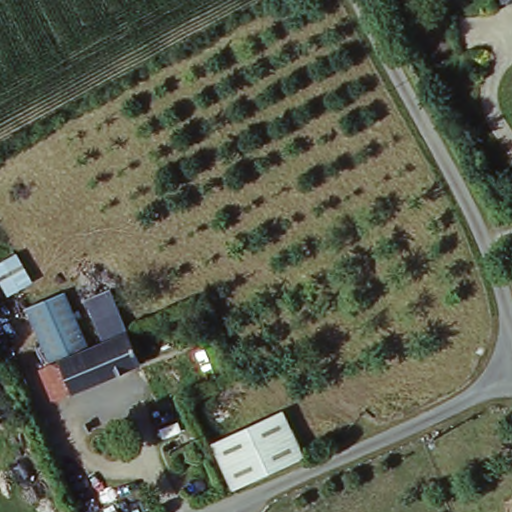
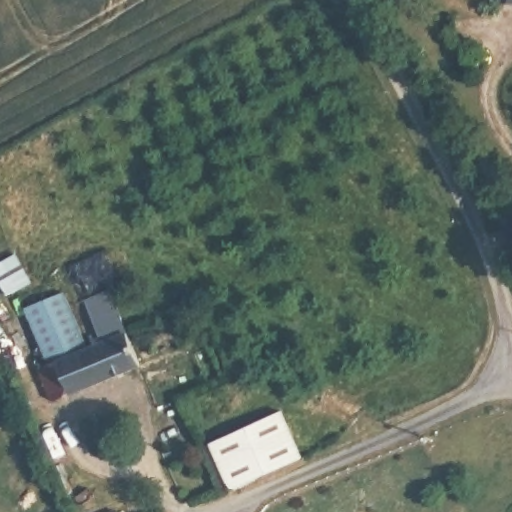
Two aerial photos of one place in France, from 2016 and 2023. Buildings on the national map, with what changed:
unchanged [(35,279),(8,297),(0,285),(0,259),(16,249),(35,279)]
unchanged [(50,335),(80,322),(89,340),(101,335),(95,321),(83,296),(109,285),(119,308),(143,360),(59,400),(41,363),(51,359),(44,343),(51,340),(50,335)]
unchanged [(27,305),(64,288),(80,322),(50,335),(51,340),(44,343),(27,305)]
unchanged [(282,413),(303,460),(275,472),(256,425),(282,413)]
unchanged [(275,472),(233,490),(211,443),(256,425),(275,472)]

